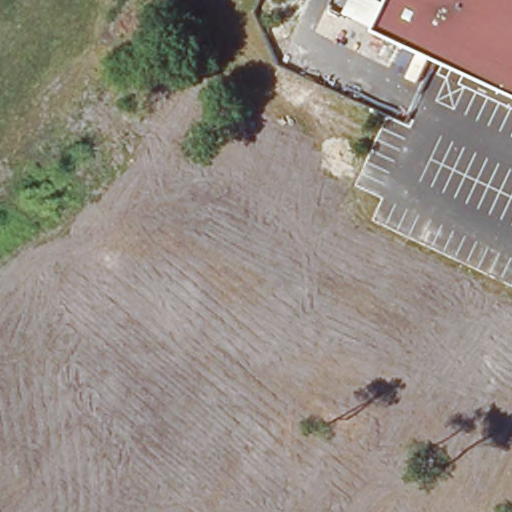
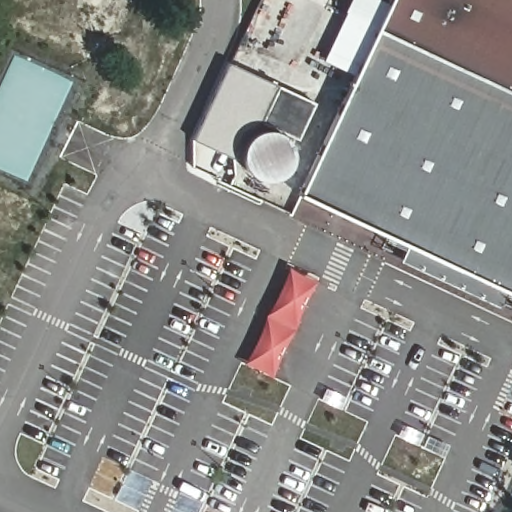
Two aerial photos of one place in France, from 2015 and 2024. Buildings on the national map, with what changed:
unchanged [(392,0),(512,0),(512,89),(379,29),(392,0)]
new [(498,307),(401,261),(408,246),(300,194),(355,76),(379,29),(512,89),(512,293),(506,291),(498,307)]
new [(228,63),(279,85),(256,131),(249,135),(242,145),(242,150),(237,148),(233,158),(193,140),(228,63)]
new [(293,144),(296,150),(294,164),(286,175),(275,181),(262,182),(247,172),(243,163),(242,145),(249,135),(256,131),(279,85),(314,101),(293,144)]
new [(291,267),(318,280),(270,377),(244,364),(291,267)]

